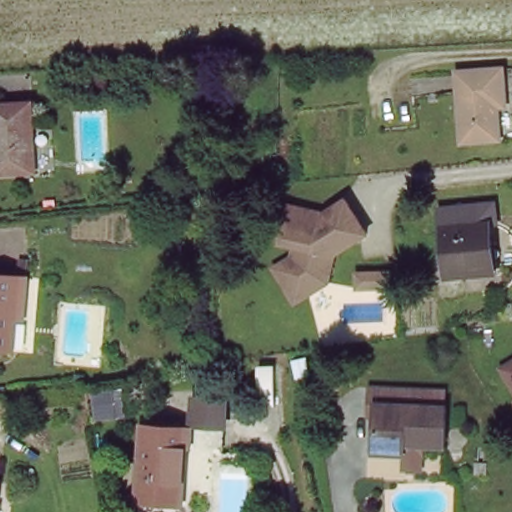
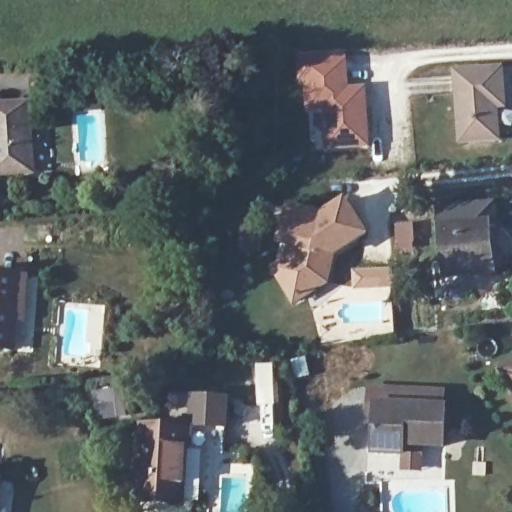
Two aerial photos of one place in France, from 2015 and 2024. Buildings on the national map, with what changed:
new [(325,149),(322,112),(307,112),(305,82),(300,82),(298,55),(348,53),(350,88),(366,87),(370,147),(325,149)]
unchanged [(505,105),(496,106),(495,136),(459,136),(459,68),(505,68),(505,105)]
unchanged [(33,144),(27,144),(29,170),(0,172),(0,105),(30,103),(33,144)]
unchanged [(301,304),(278,271),(296,260),(298,248),(284,245),(292,208),(327,216),(348,202),(370,234),(338,255),(333,283),(314,296),(301,304)]
unchanged [(496,238),(485,241),(489,265),(455,270),(450,238),(449,227),(494,222),(496,238)]
unchanged [(261,236),(262,257),(246,257),(246,236),(261,236)]
unchanged [(0,348),(0,271),(25,272),(25,286),(23,313),(17,313),(13,348),(0,348)]
unchanged [(368,291),(367,281),(400,278),(401,284),(401,292),(388,293),(368,294),(368,291)]
unchanged [(512,365),(512,379),(506,369),(512,365)]
unchanged [(197,389),(230,392),(226,442),(193,439),(194,423),(197,389)]
unchanged [(407,457),(380,456),(381,423),(373,423),(373,397),(427,397),(447,397),(448,412),(450,412),(449,449),(426,448),(426,458),(407,457)]
unchanged [(193,439),(193,442),(183,442),(179,495),(136,491),(141,418),(194,423),(193,439)]
unchanged [(7,484),(2,512),(0,512),(0,483),(7,484)]

